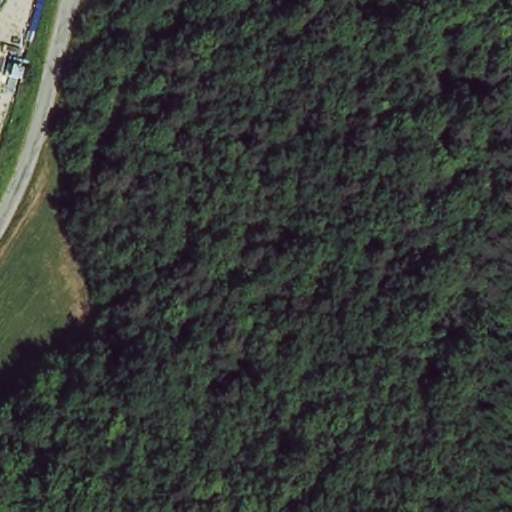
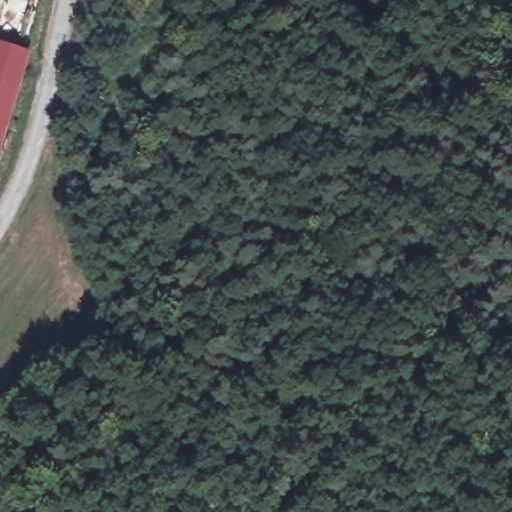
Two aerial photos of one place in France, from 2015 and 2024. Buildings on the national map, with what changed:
new [(30,51),(0,149),(0,41),(30,51)]

